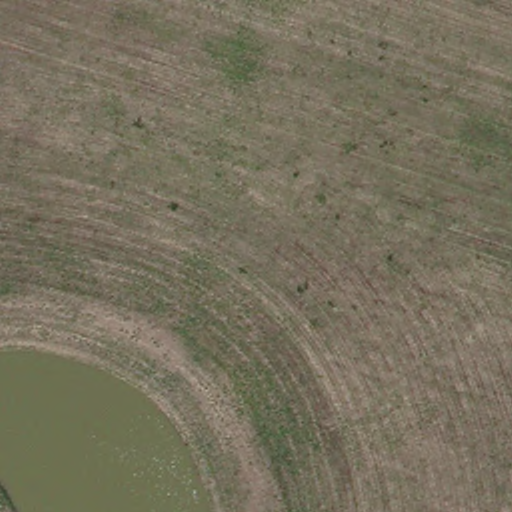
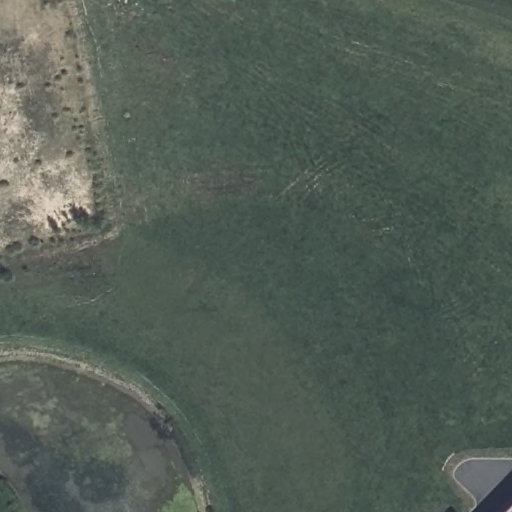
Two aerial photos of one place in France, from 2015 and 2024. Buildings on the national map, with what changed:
new [(512,506),(512,512),(506,512),(512,506)]

